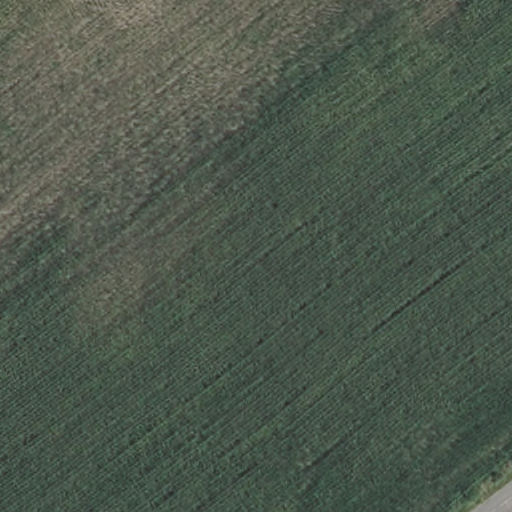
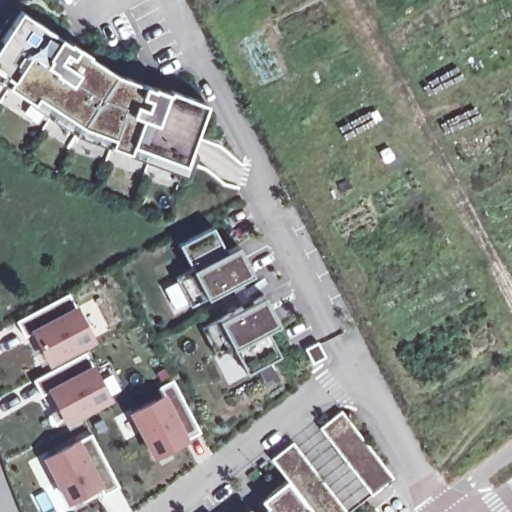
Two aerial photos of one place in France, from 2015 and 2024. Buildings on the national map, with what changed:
new [(69,40),(70,39),(90,52),(89,53),(117,71),(154,85),(154,84),(171,90),(171,87),(208,101),(186,162),(133,142),(130,149),(111,142),(114,135),(88,125),(84,136),(78,133),(72,129),(78,120),(38,94),(34,100),(8,83),(13,77),(0,69),(0,42),(21,9),(69,40)]
new [(231,283),(191,304),(176,275),(188,269),(175,244),(209,226),(222,251),(239,243),(253,271),(241,278),(252,299),(265,293),(280,321),(264,330),(276,355),(243,373),(229,347),(218,354),(203,325),(243,304),(231,283)]
new [(35,334),(26,339),(18,323),(70,296),(94,341),(51,364),(35,334)]
new [(85,352),(89,363),(93,362),(114,398),(66,425),(48,390),(40,395),(33,379),(85,352)]
new [(188,439),(152,459),(128,411),(162,394),(158,388),(173,380),(200,433),(188,439)]
new [(341,408),(394,475),(372,492),(319,425),(341,408)]
new [(120,488),(104,496),(99,487),(69,503),(46,459),(92,435),(120,488)]
new [(261,497),(288,477),(271,456),(293,440),(349,511),(347,512),(257,512),(267,504),(261,497)]
new [(254,512),(243,512),(250,506),(254,512)]

